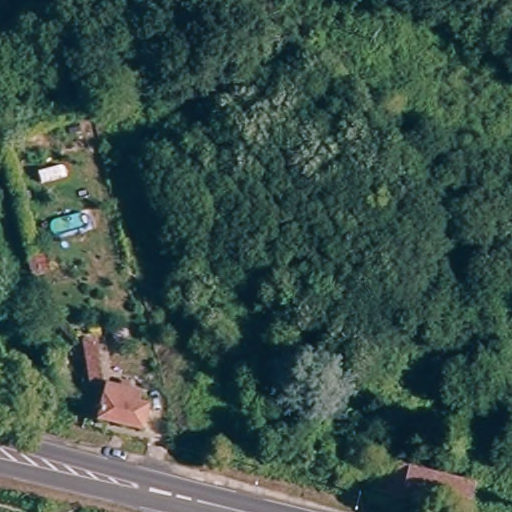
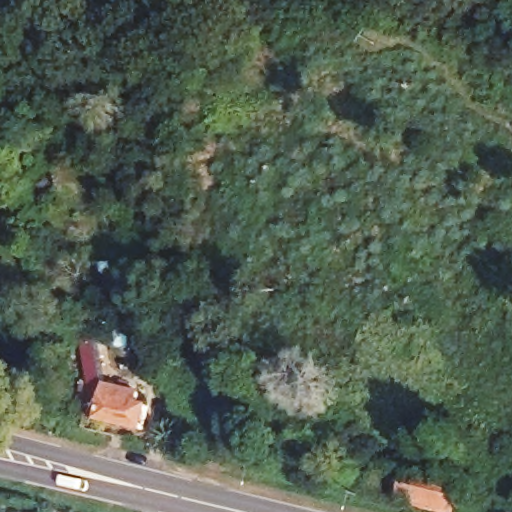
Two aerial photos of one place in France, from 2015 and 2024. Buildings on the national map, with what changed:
unchanged [(109,386),(142,395),(141,398),(155,401),(145,433),(101,424),(84,420),(88,388),(80,347),(100,342),(109,386)]
unchanged [(469,512),(438,512),(374,498),(381,465),(475,487),(469,512)]

